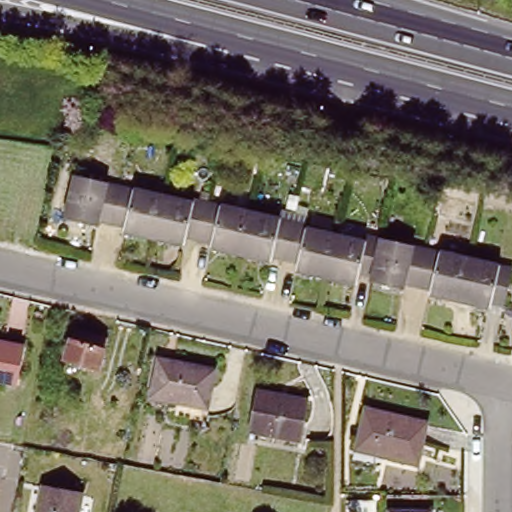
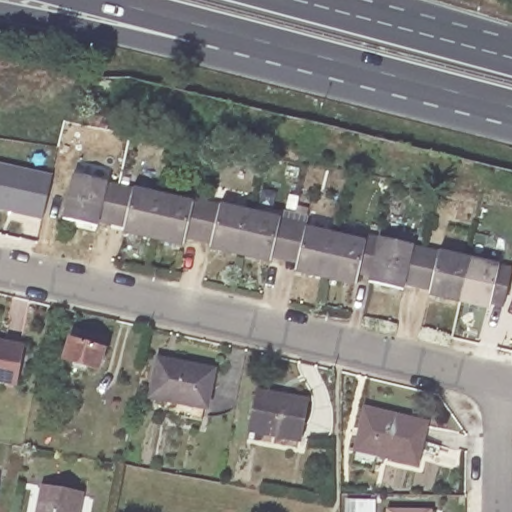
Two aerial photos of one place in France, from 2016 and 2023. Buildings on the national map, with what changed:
new [(44,220),(0,210),(0,162),(52,173),(44,220)]
unchanged [(105,183),(104,186),(115,188),(108,222),(97,219),(95,225),(64,218),(73,175),(105,183)]
unchanged [(158,195),(148,237),(122,231),(124,225),(108,222),(115,188),(131,192),(131,188),(158,195)]
unchanged [(190,202),(191,198),(203,200),(195,235),(184,232),(182,245),(148,237),(158,195),(190,202)]
unchanged [(246,208),(237,251),(207,245),(208,238),(195,235),(203,200),(217,204),(218,201),(246,208)]
unchanged [(276,215),(275,217),(289,221),(281,255),(270,252),(268,259),(237,251),(246,208),(276,215)]
unchanged [(303,224),(302,226),(331,232),(321,277),(291,271),(294,258),(281,255),(289,221),(303,224)]
unchanged [(360,239),(361,235),(375,238),(367,274),(353,271),(350,284),(321,277),(331,232),(360,239)]
unchanged [(408,241),(408,245),(423,248),(415,285),(399,282),(398,289),(366,281),(367,274),(375,238),(376,234),(408,241)]
unchanged [(466,255),(456,302),(425,295),(427,288),(415,285),(423,248),(436,252),(437,248),(466,255)]
unchanged [(491,260),(491,262),(504,265),(496,303),(483,300),(481,308),(456,302),(466,255),(491,260)]
unchanged [(104,346),(94,376),(60,366),(70,336),(104,346)]
unchanged [(22,342),(14,380),(0,378),(0,338),(22,342)]
unchanged [(215,371),(206,407),(151,395),(160,359),(215,371)]
unchanged [(306,405),(296,445),(243,433),(252,393),(306,405)]
unchanged [(425,422),(416,464),(354,450),(363,407),(425,422)]
unchanged [(77,512),(36,512),(41,488),(81,496),(77,512)]

